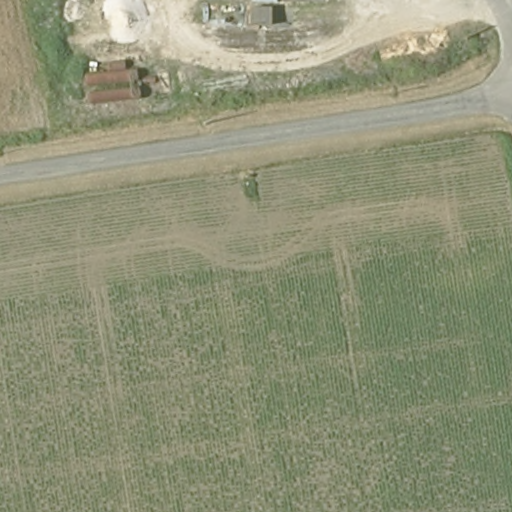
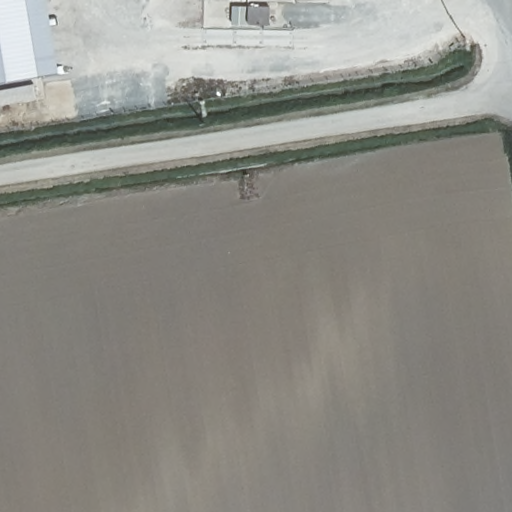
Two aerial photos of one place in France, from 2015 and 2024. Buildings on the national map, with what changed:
new [(0,0),(52,0),(64,73),(0,84),(0,0)]

